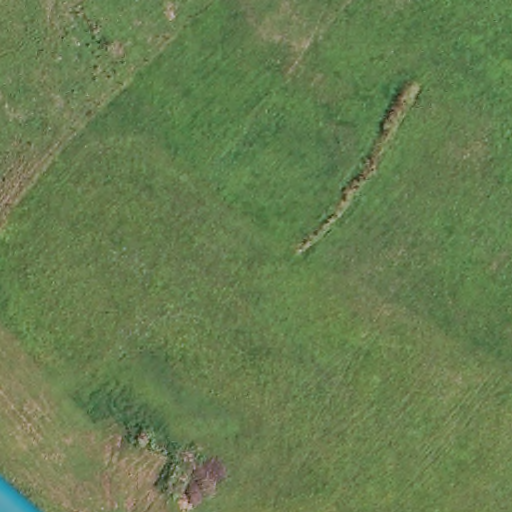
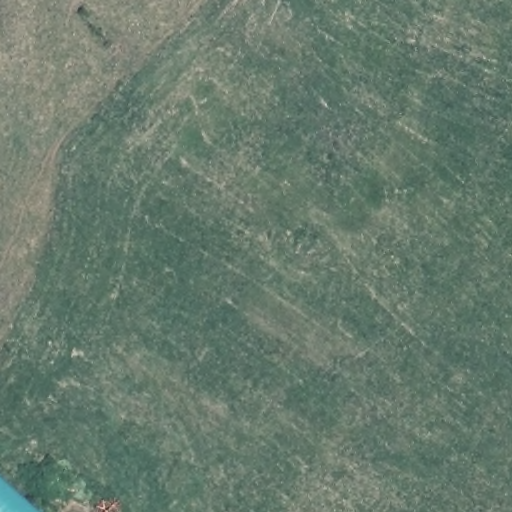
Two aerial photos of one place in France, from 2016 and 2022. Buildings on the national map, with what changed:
unchanged [(0,481),(37,512),(0,512),(0,481)]

